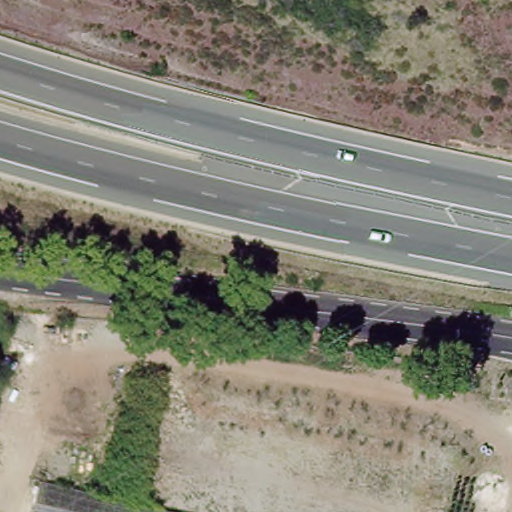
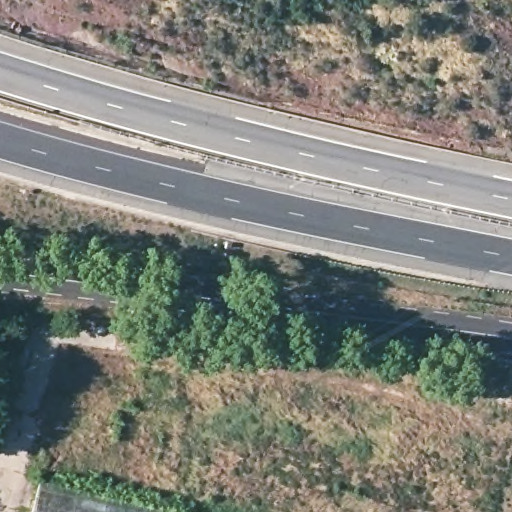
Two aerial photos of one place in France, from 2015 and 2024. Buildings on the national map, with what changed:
unchanged [(30,512),(39,481),(170,512),(30,512)]

